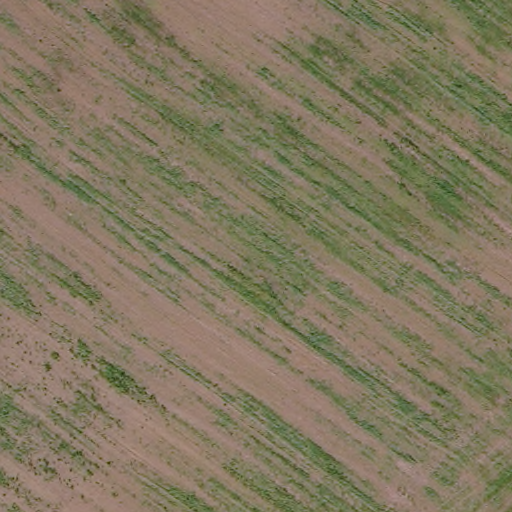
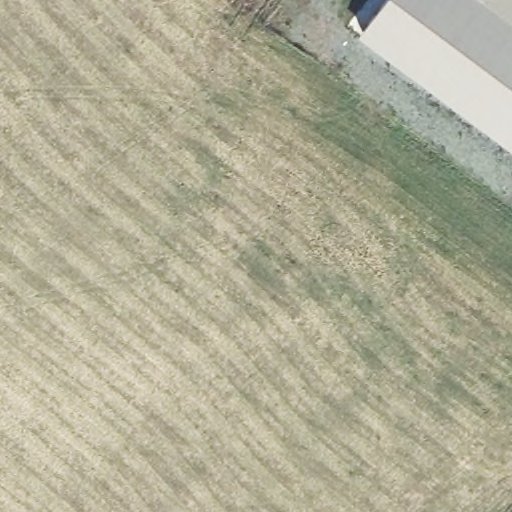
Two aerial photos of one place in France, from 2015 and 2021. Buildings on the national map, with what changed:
new [(512,0),(512,147),(362,34),(388,0),(512,0)]

